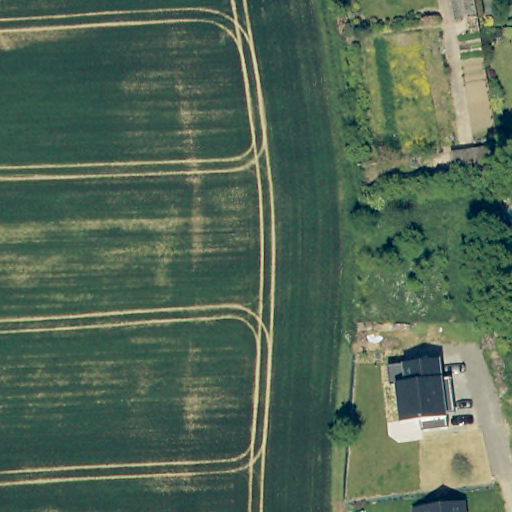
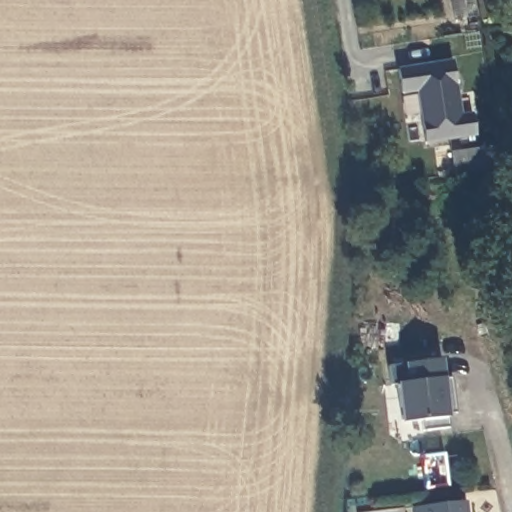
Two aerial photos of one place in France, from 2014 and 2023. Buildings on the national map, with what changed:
unchanged [(479,13),(453,17),(451,0),(477,0),(479,13)]
new [(462,115),(474,113),(477,137),(424,144),(417,91),(400,93),(398,68),(453,60),(462,115)]
unchanged [(498,170),(454,175),(450,149),(496,143),(498,170)]
unchanged [(395,386),(391,386),(389,366),(406,365),(441,361),(443,380),(450,378),(455,413),(449,414),(451,430),(424,433),(424,421),(401,425),(395,386)]
unchanged [(465,504),(466,512),(413,512),(413,508),(465,504)]

